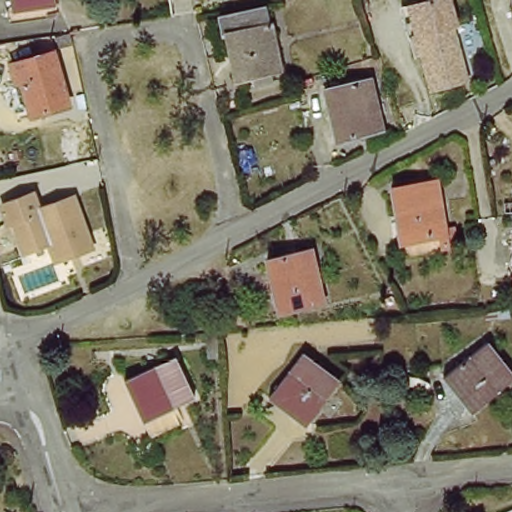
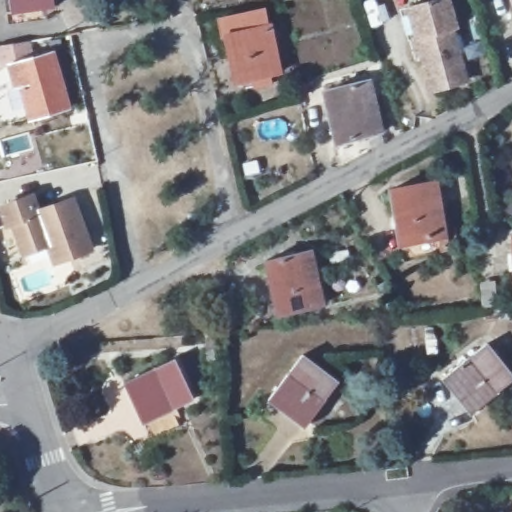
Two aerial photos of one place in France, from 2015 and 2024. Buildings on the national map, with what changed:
unchanged [(46,9),(48,20),(9,25),(6,0),(54,0),(55,7),(46,9)]
unchanged [(283,0),(289,0),(283,1),(283,0)]
unchanged [(447,0),(455,31),(451,32),(465,85),(430,94),(408,10),(447,0)]
unchanged [(256,87),(254,77),(236,81),(231,54),(233,53),(230,35),(225,36),(221,19),(266,10),(270,26),(271,26),(281,72),(271,75),(273,84),(256,87)]
unchanged [(53,50),(50,40),(65,36),(68,46),(53,50)]
unchanged [(65,107),(28,119),(18,85),(13,86),(6,65),(49,54),(65,107)]
unchanged [(330,110),(337,109),(332,90),(371,81),(385,132),(339,145),(330,110)]
unchanged [(452,235),(443,237),(444,242),(434,245),(434,247),(408,252),(406,237),(400,238),(397,219),(393,220),(387,185),(433,177),(441,227),(451,225),(452,235)]
unchanged [(33,191),(39,207),(74,195),(92,245),(56,258),(50,240),(25,249),(15,219),(8,220),(2,202),(33,191)]
unchanged [(325,304),(284,313),(280,295),(276,296),(268,262),(312,252),(325,304)]
unchanged [(506,315),(507,327),(484,330),(483,318),(506,315)]
unchanged [(489,341),(512,370),(512,381),(474,411),(447,375),(489,341)]
unchanged [(300,355),(335,382),(301,426),(266,399),(300,355)]
unchanged [(155,440),(147,423),(128,385),(177,360),(196,398),(174,410),(181,427),(155,440)]

